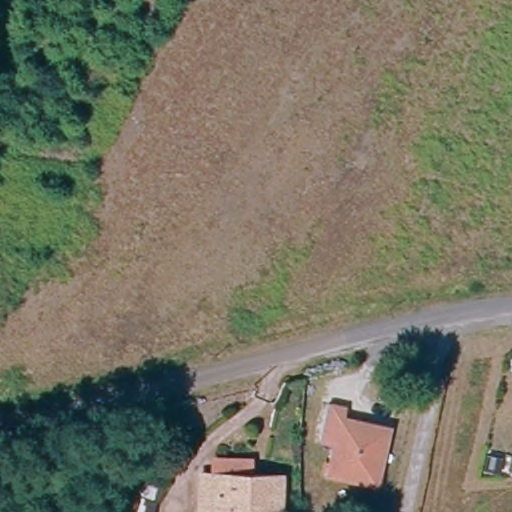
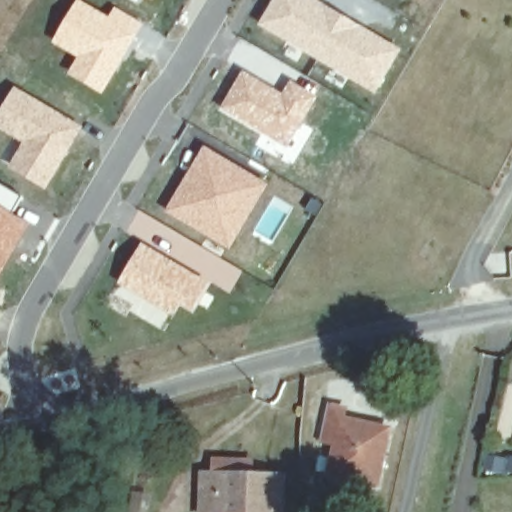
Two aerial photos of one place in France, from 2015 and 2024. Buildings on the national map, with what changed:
new [(67,75),(78,58),(52,44),(78,0),(80,0),(109,18),(115,8),(143,24),(103,96),(67,75)]
new [(151,0),(154,0),(153,1),(151,0)]
new [(258,26),(273,0),(317,0),(402,50),(376,95),(258,26)]
new [(288,148),(221,109),(243,71),(282,95),(290,81),(318,98),(288,148)]
new [(47,191),(9,169),(23,144),(0,129),(0,112),(15,87),(83,127),(47,191)]
new [(230,251),(166,213),(204,146),(269,184),(230,251)]
new [(0,278),(0,184),(21,197),(11,214),(31,226),(0,278)]
new [(194,313),(181,305),(174,316),(117,284),(141,243),(209,283),(194,313)]
unchanged [(336,440),(322,437),(330,401),(344,404),(342,415),(388,424),(375,482),(329,472),(336,440)]
unchanged [(280,512),(241,512),(203,512),(204,469),(215,469),(215,455),(250,456),(250,469),(280,470),(280,512)]

